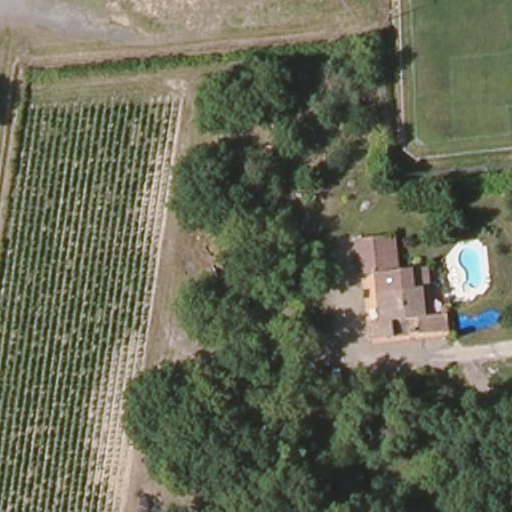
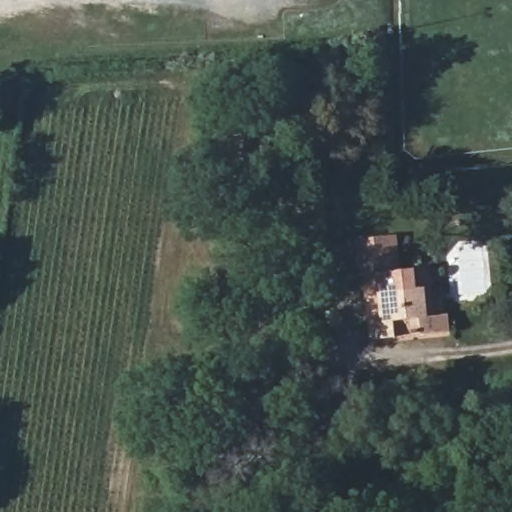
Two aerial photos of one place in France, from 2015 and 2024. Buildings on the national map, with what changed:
unchanged [(373,344),(373,325),(383,325),(380,276),(363,277),(362,242),(398,237),(402,272),(427,270),(430,292),(432,320),(445,318),(446,336),(412,338),(394,341),(373,344)]
unchanged [(209,425),(212,398),(251,403),(260,405),(256,432),(247,430),(209,425)]

